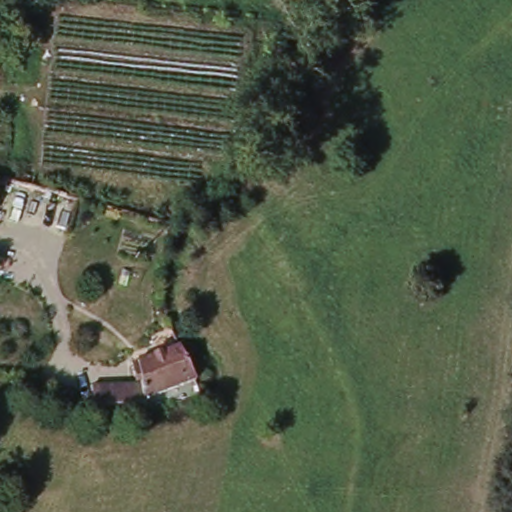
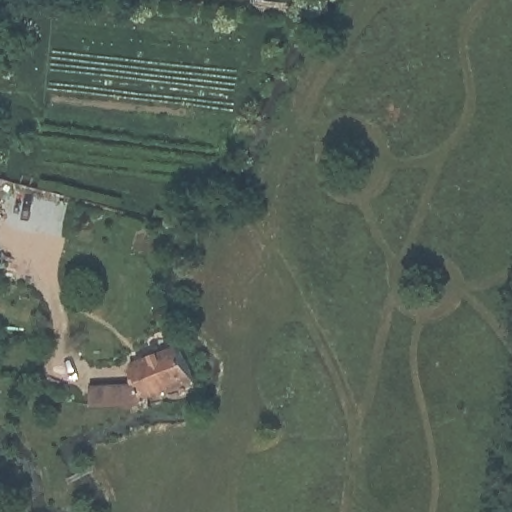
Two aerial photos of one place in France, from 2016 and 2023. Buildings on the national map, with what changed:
unchanged [(10,101),(10,129),(0,129),(0,101),(10,101)]
unchanged [(200,378),(155,399),(154,410),(91,408),(92,384),(141,382),(135,363),(192,348),(200,378)]

